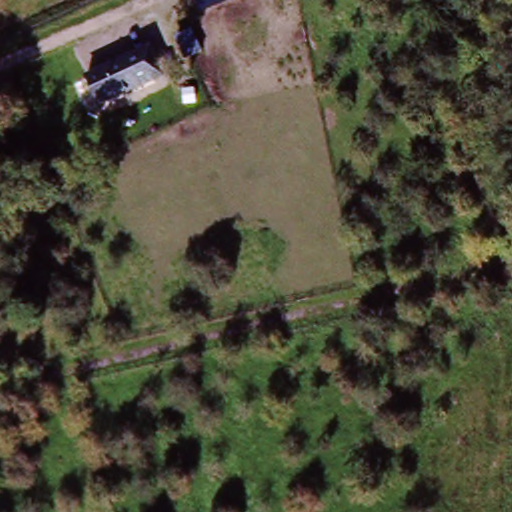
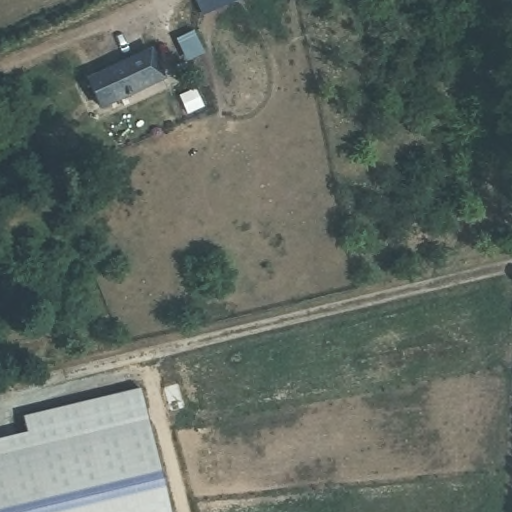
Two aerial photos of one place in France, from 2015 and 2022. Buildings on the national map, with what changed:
unchanged [(83,77),(141,52),(149,49),(160,78),(153,81),(96,105),(83,77)]
new [(170,512),(0,512),(0,455),(147,420),(170,512)]

